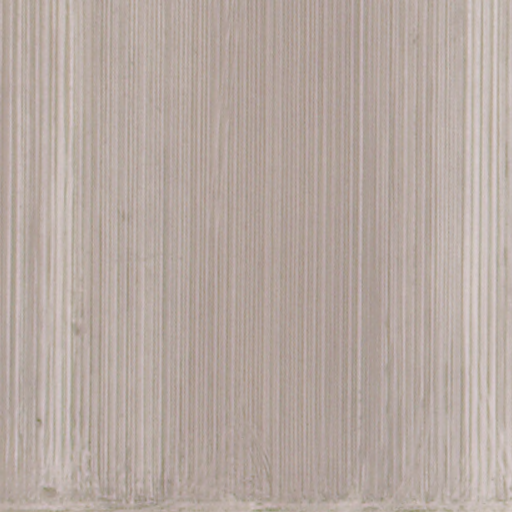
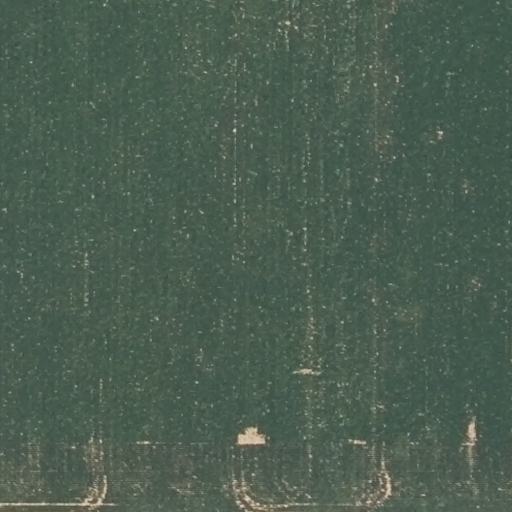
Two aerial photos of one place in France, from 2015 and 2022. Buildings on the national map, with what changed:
[]

